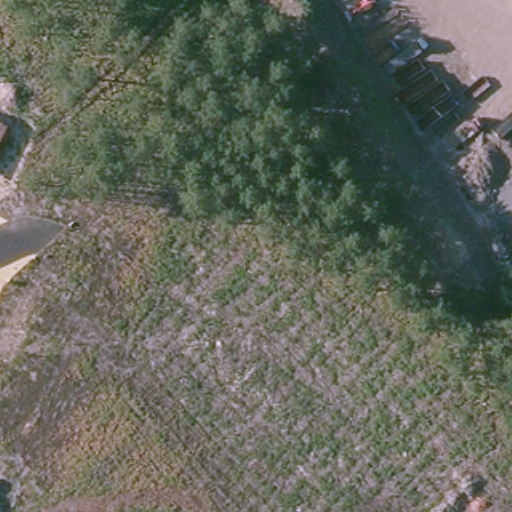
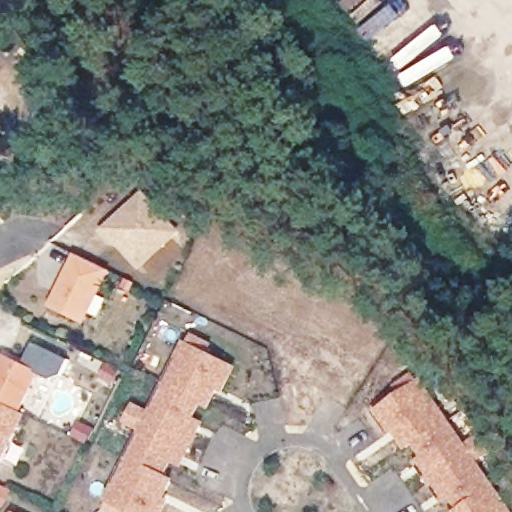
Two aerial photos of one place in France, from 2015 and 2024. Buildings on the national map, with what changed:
unchanged [(4,132),(0,141),(0,130),(4,132)]
new [(177,239),(142,271),(117,245),(107,234),(120,223),(144,201),(177,239)]
unchanged [(76,250),(108,266),(83,317),(51,301),(57,289),(62,280),(76,250)]
new [(167,496),(160,512),(148,512),(128,503),(125,511),(109,504),(113,495),(110,494),(145,423),(126,414),(133,400),(152,410),(187,338),(190,340),(194,331),(210,339),(206,347),(234,362),(224,382),(219,380),(210,399),(201,395),(210,376),(192,414),(201,419),(191,437),(182,456),(173,452),(163,471),(172,475),(163,494),(167,496)]
new [(5,354),(38,370),(20,407),(0,397),(0,365),(5,354)]
new [(451,491),(443,496),(431,479),(419,462),(427,456),(415,438),(407,444),(395,427),(391,430),(378,410),(404,392),(399,385),(413,374),(418,382),(421,381),(466,446),(483,434),(492,446),(474,458),(512,512),(458,512),(463,508),(451,491)]
new [(20,407),(23,409),(0,457),(0,397),(20,407)]

